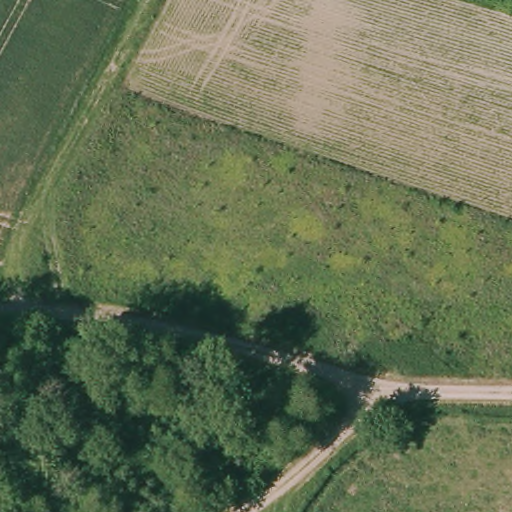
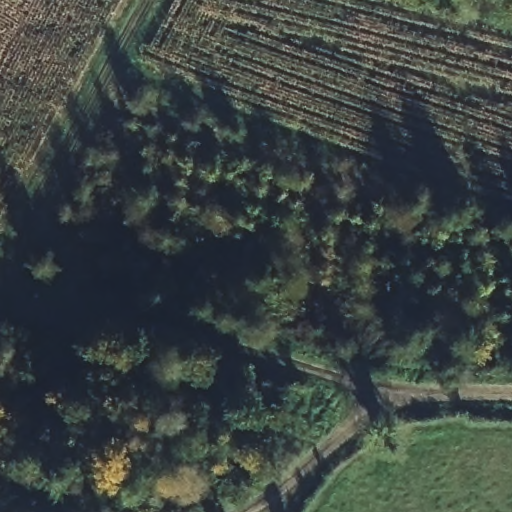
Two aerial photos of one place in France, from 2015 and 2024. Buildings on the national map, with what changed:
unchanged [(331,425),(317,433),(308,410),(323,403),(331,425)]

